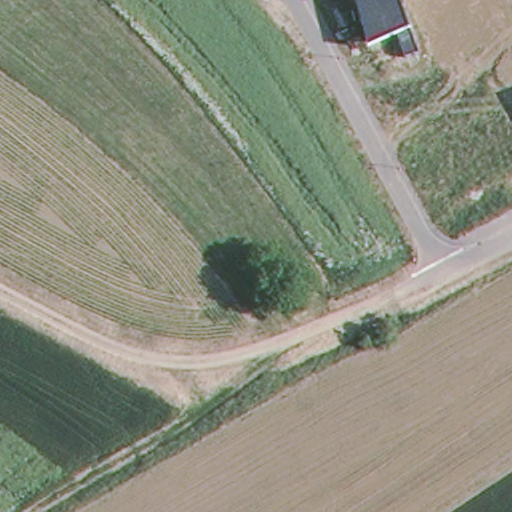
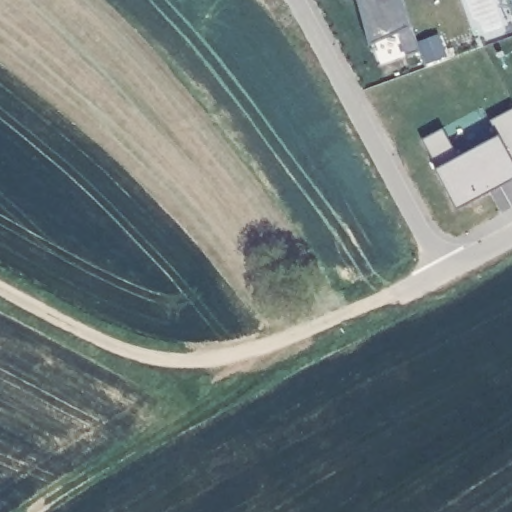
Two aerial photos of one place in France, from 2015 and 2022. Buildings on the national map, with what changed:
unchanged [(418,49),(403,54),(395,32),(370,42),(357,0),(400,0),(408,25),(418,49)]
new [(512,4),(511,0),(512,0),(512,4)]
new [(440,36),(447,58),(427,64),(422,42),(440,36)]
new [(457,159),(498,136),(490,121),(512,109),(512,181),(455,210),(422,141),(443,131),(457,159)]

